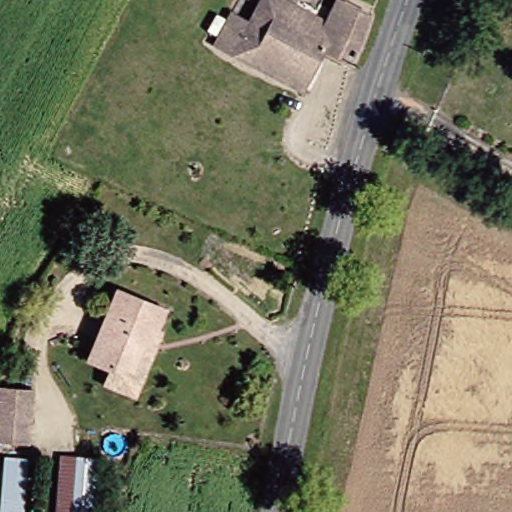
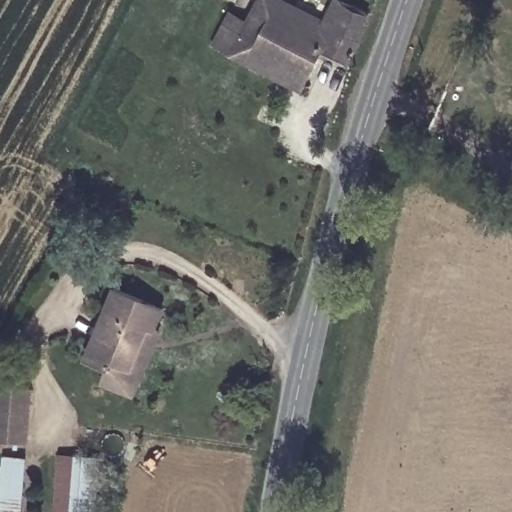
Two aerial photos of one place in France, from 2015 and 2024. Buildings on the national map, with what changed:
unchanged [(326,46),(306,86),(217,38),(233,8),(251,16),(260,0),(295,0),(322,16),(331,0),(348,0),(368,11),(356,62),(326,46)]
unchanged [(150,316),(133,356),(115,349),(111,358),(89,349),(119,279),(166,298),(158,320),(150,316)]
unchanged [(161,322),(134,385),(105,373),(111,358),(115,349),(133,356),(150,316),(158,320),(161,322)]
unchanged [(0,434),(0,407),(4,379),(34,382),(33,390),(33,434),(0,434)]
unchanged [(99,452),(94,512),(55,512),(60,449),(99,452)]
unchanged [(29,453),(23,512),(3,512),(6,451),(29,453)]

